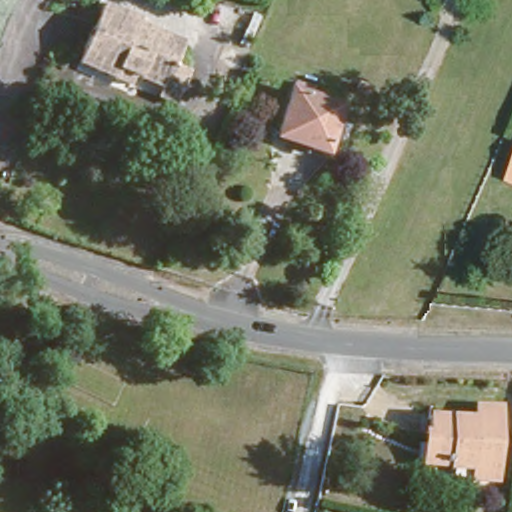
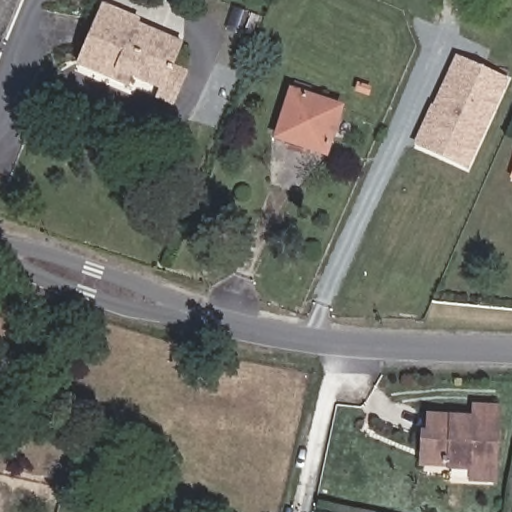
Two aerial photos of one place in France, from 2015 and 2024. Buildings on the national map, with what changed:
unchanged [(161,82),(127,68),(122,81),(106,74),(69,58),(95,0),(104,0),(112,2),(137,12),(134,19),(177,36),(169,62),(182,67),(166,105),(154,97),(161,82)]
new [(468,171),(413,146),(455,54),(510,79),(468,171)]
unchanged [(304,158),(307,151),(269,135),(290,86),(308,94),(305,103),(317,109),(322,98),(346,109),(342,119),(325,167),(304,158)]
unchanged [(512,166),(508,165),(512,155),(512,166)]
unchanged [(427,422),(427,407),(468,408),(470,394),(495,395),(493,470),(471,468),(472,460),(452,458),(452,451),(414,448),(416,422),(427,422)]

